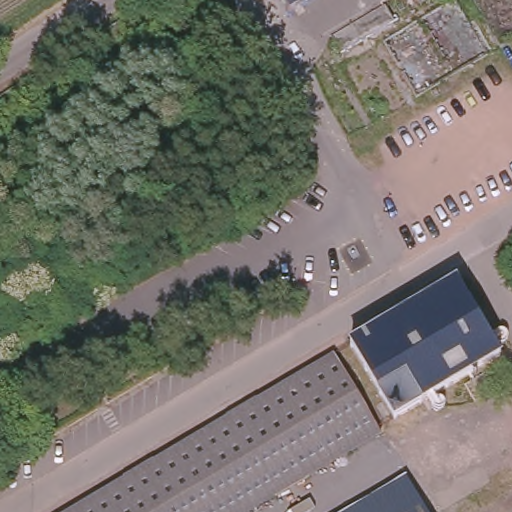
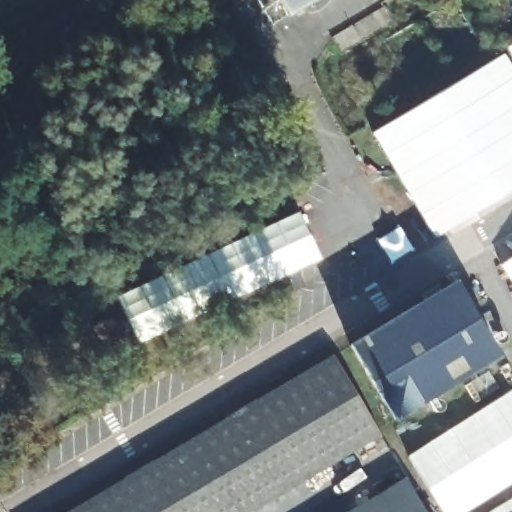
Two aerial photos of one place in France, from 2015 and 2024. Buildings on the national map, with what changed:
unchanged [(283,0),(299,0),(288,7),(283,0)]
new [(512,46),(512,56),(508,49),(512,46)]
new [(433,229),(377,134),(506,57),(512,67),(512,184),(433,229)]
new [(301,215),(322,259),(143,345),(120,296),(301,215)]
new [(512,259),(512,283),(502,266),(512,259)]
unchanged [(347,342),(419,299),(415,290),(432,281),(437,290),(452,282),(494,355),(391,416),(347,342)]
unchanged [(330,352),(377,432),(240,512),(65,512),(330,352)]
demolished [(463,384),(485,371),(494,386),(471,400),(463,384)]
new [(467,512),(445,512),(410,457),(512,390),(512,484),(467,512)]
unchanged [(403,481),(421,512),(349,512),(403,481)]

